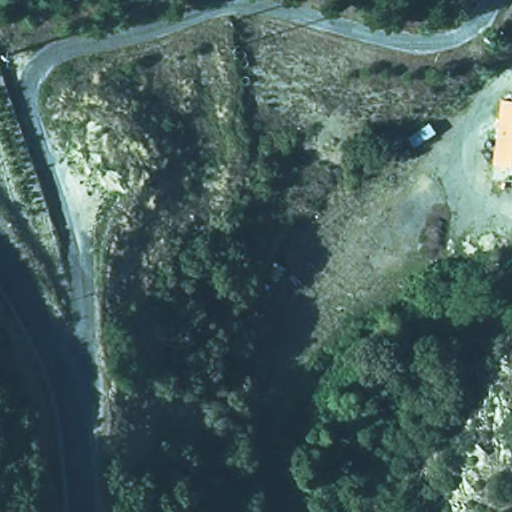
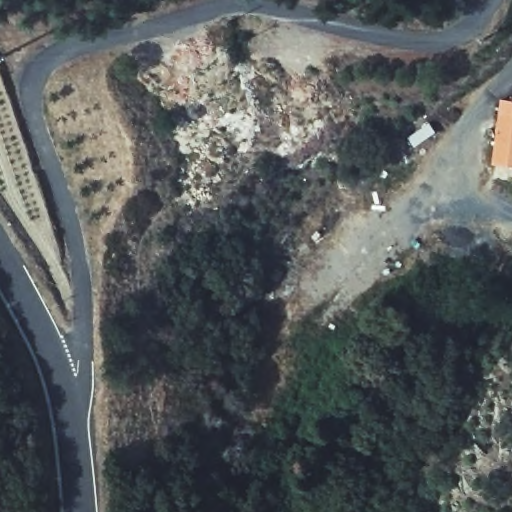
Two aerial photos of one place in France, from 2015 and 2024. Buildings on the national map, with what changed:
unchanged [(496,167),(502,102),(512,104),(512,168),(496,167)]

